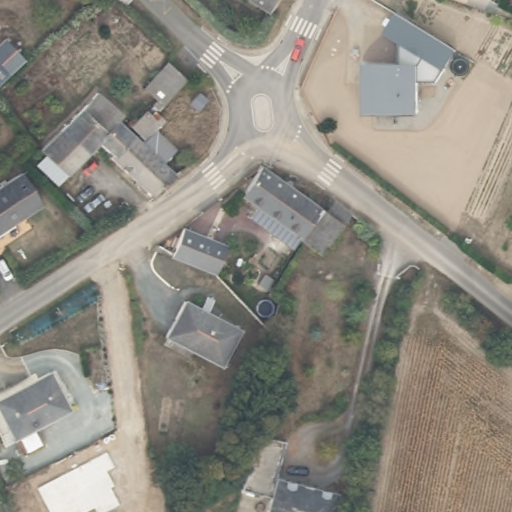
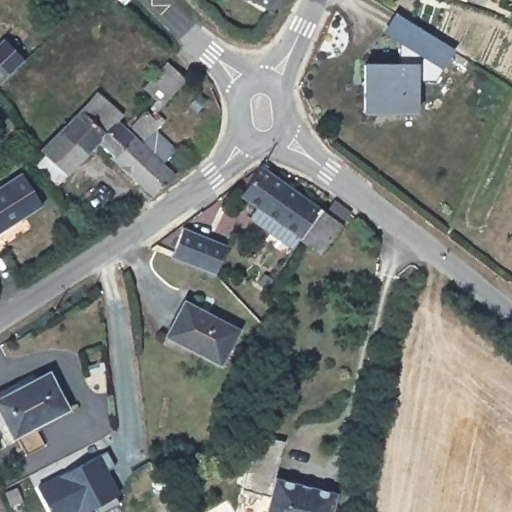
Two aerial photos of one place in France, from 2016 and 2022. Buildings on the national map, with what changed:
unchanged [(240,0),(282,0),(268,20),(240,0)]
unchanged [(436,79),(420,81),(418,114),(369,116),(370,62),(407,63),(411,51),(385,32),(396,11),(455,49),(436,79)]
new [(8,39),(29,61),(15,75),(0,89),(0,47),(8,39)]
unchanged [(151,88),(164,76),(176,64),(190,76),(178,90),(165,103),(151,88)]
unchanged [(112,156),(134,133),(140,126),(135,121),(149,106),(156,114),(172,133),(134,174),(112,156)]
unchanged [(100,145),(89,158),(59,129),(79,107),(105,129),(117,116),(134,133),(112,156),(100,145)]
unchanged [(75,172),(56,189),(31,161),(43,150),(40,146),(59,129),(89,158),(75,172)]
unchanged [(134,174),(172,133),(179,141),(167,153),(184,170),(155,193),(134,174)]
unchanged [(255,213),(237,201),(256,172),(318,212),(315,215),(297,242),(290,255),(273,243),(246,225),(255,213)]
unchanged [(22,174),(41,204),(0,230),(0,187),(22,174)]
unchanged [(320,257),(297,242),(315,215),(322,219),(331,206),(337,210),(346,218),(320,257)]
unchanged [(173,252),(185,223),(228,239),(217,269),(173,252)]
unchanged [(241,331),(221,367),(167,338),(187,302),(241,331)]
unchanged [(47,373),(67,412),(13,441),(0,417),(0,398),(47,373)]
unchanged [(338,488),(335,512),(272,512),(272,504),(245,501),(251,442),(280,446),(275,481),(338,488)]
new [(107,452),(115,467),(107,471),(115,486),(111,488),(120,505),(106,512),(97,512),(95,508),(86,512),(78,512),(77,511),(76,512),(50,512),(37,488),(107,452)]

